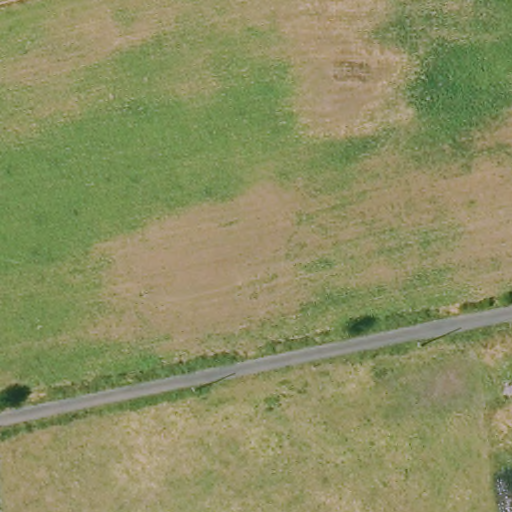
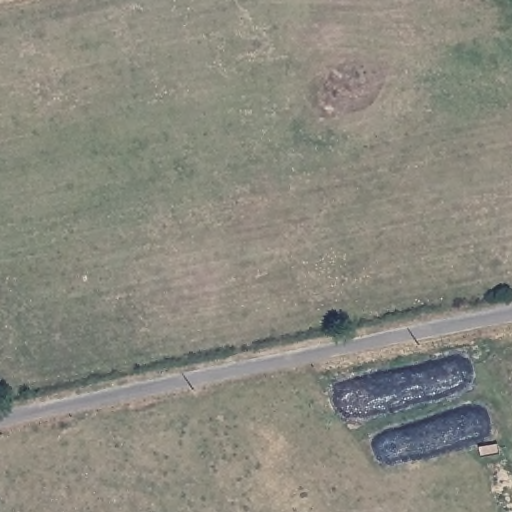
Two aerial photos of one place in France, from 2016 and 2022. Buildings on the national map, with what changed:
[]

